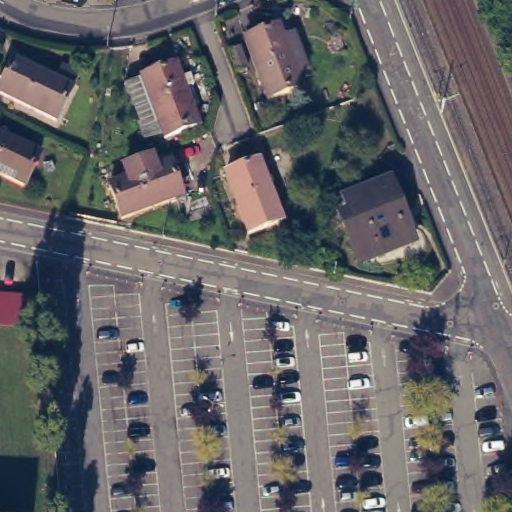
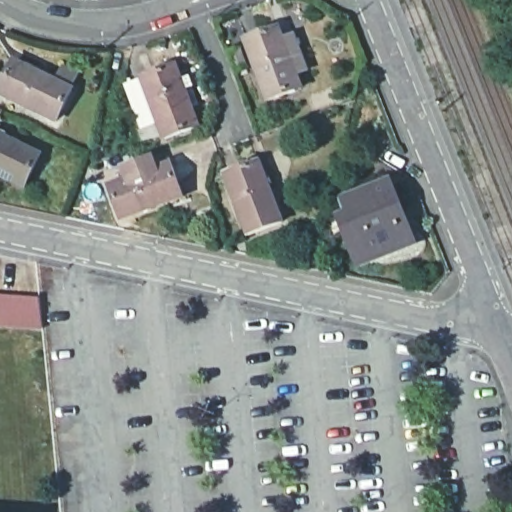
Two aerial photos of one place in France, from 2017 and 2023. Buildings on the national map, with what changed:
unchanged [(278,19),(301,80),(268,92),(245,31),(278,19)]
unchanged [(56,117),(0,90),(0,85),(14,57),(72,85),(56,117)]
unchanged [(170,135),(167,126),(147,126),(130,81),(147,74),(180,62),(186,77),(195,74),(198,83),(203,101),(196,104),(203,122),(170,135)]
unchanged [(40,147),(25,179),(0,166),(0,127),(40,147)]
unchanged [(115,182),(174,158),(187,193),(127,216),(115,182)]
unchanged [(248,231),(226,171),(260,158),(282,219),(248,231)]
unchanged [(394,175),(415,236),(375,252),(373,252),(371,252),(370,252),(368,252),(366,252),(365,251),(363,250),(362,249),(361,247),(360,246),(348,215),(357,211),(350,192),(394,175)]
unchanged [(42,330),(0,327),(0,297),(40,300),(42,330)]

